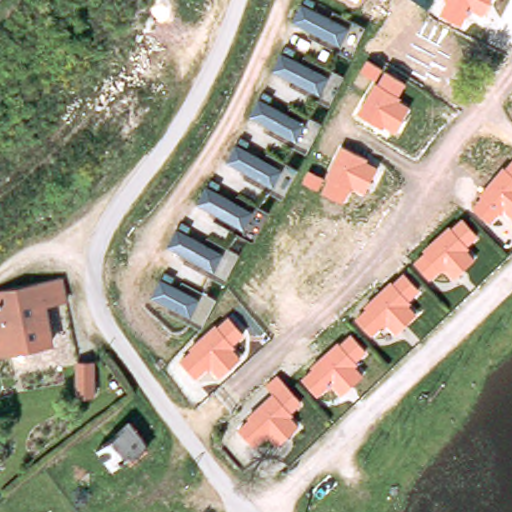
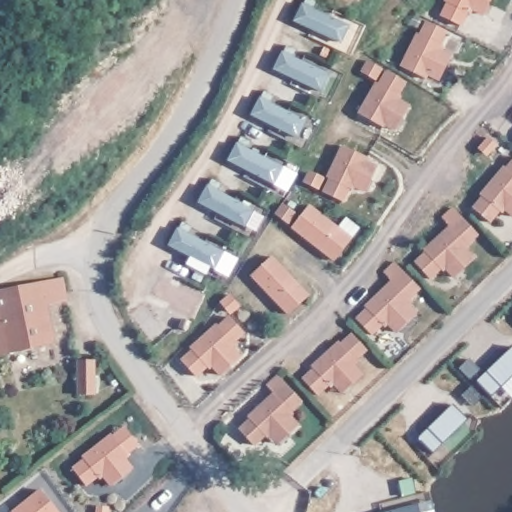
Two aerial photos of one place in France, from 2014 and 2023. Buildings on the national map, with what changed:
unchanged [(448,2),(446,1),(446,0),(491,0),(484,15),(473,9),(470,13),(467,11),(461,24),(442,14),(448,2)]
new [(419,34),(426,20),(448,30),(441,45),(446,47),(443,51),(452,55),(440,80),(428,75),(426,79),(401,65),(416,31),(419,34)]
unchanged [(378,85),(386,70),(407,82),(399,95),(403,96),(401,100),(409,105),(394,130),(384,124),(382,127),(359,112),(374,83),(378,85)]
unchanged [(328,177),(326,176),(342,145),(369,158),(367,161),(377,165),(364,193),(352,189),(350,193),(347,192),(343,202),(322,194),(328,177)]
unchanged [(503,165),(505,167),(512,159),(512,218),(504,212),(502,215),(499,212),(490,222),(472,207),(483,195),(481,194),(503,165)]
new [(352,237),(333,261),(291,227),(309,204),(352,237)]
unchanged [(422,249),(449,225),(452,226),(463,217),(479,236),(468,245),(471,247),(468,250),(477,257),(454,277),(446,270),(443,271),(441,268),(429,278),(413,261),(424,251),(422,249)]
new [(311,295),(287,316),(249,275),(272,255),(311,295)]
unchanged [(364,305),(392,280),(393,281),(404,272),(420,290),(410,300),(413,302),(409,306),(417,313),(395,333),(386,323),(383,326),(381,324),(371,335),(355,318),(366,308),(364,305)]
unchanged [(48,303),(54,340),(0,348),(0,302),(4,301),(3,286),(65,277),(70,300),(48,303)]
unchanged [(244,333),(233,343),(236,346),(234,348),(241,356),(219,377),(209,367),(197,377),(181,358),(191,351),(188,348),(215,324),(218,326),(228,315),(244,333)]
unchanged [(309,365),(338,341),(339,343),(352,332),(368,351),(358,361),(360,363),(356,367),(363,375),(341,394),(334,386),(332,387),(330,385),(317,396),(301,378),(311,368),(309,365)]
unchanged [(69,395),(73,362),(88,364),(84,396),(69,395)]
unchanged [(303,402),(292,411),(294,414),(291,417),(298,425),(276,445),(270,436),(266,439),(264,437),(254,445),(238,427),(248,418),(246,416),(273,392),(266,385),(276,375),(303,402)]
demolished [(121,448),(100,465),(85,445),(116,420),(136,442),(124,451),(121,448)]
new [(127,456),(124,460),(133,470),(110,487),(101,475),(86,486),(72,468),(83,460),(79,457),(110,436),(127,456)]
new [(7,501),(13,509),(43,487),(60,511),(59,512),(0,512),(0,506),(7,501)]
new [(108,508),(108,512),(95,512),(95,508),(108,508)]

